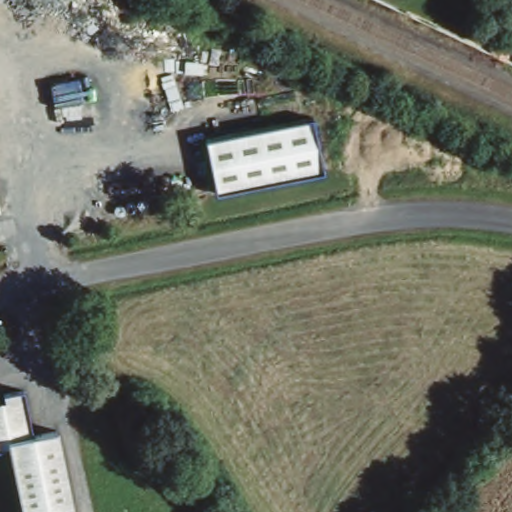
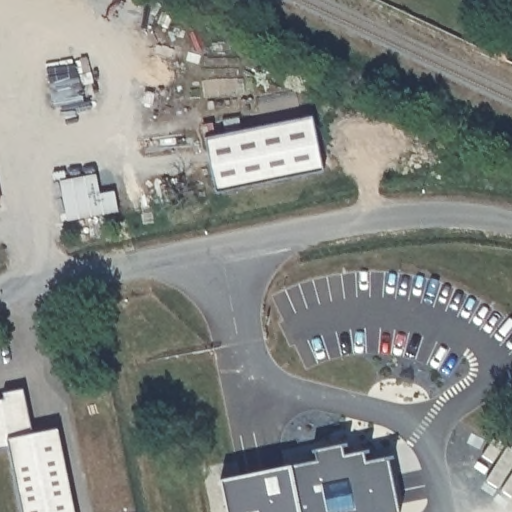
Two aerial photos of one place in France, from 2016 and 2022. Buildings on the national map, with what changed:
unchanged [(312,117),(323,170),(216,189),(206,138),(312,117)]
unchanged [(0,401),(5,400),(2,391),(22,387),(33,435),(57,430),(74,512),(23,512),(10,448),(0,449),(0,401)]
new [(290,466),(317,462),(315,451),(342,446),(344,457),(363,452),(366,463),(387,459),(399,512),(227,512),(221,481),(290,466)]

